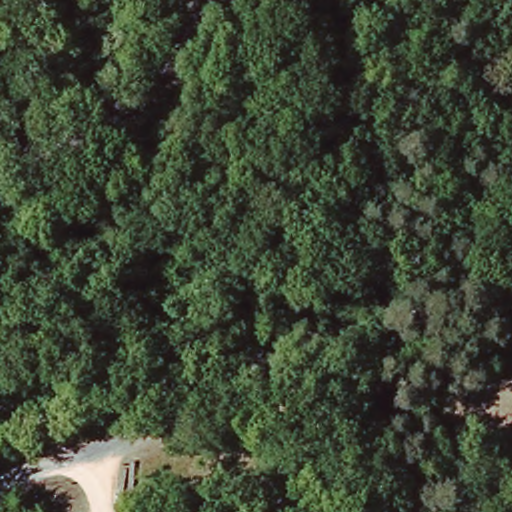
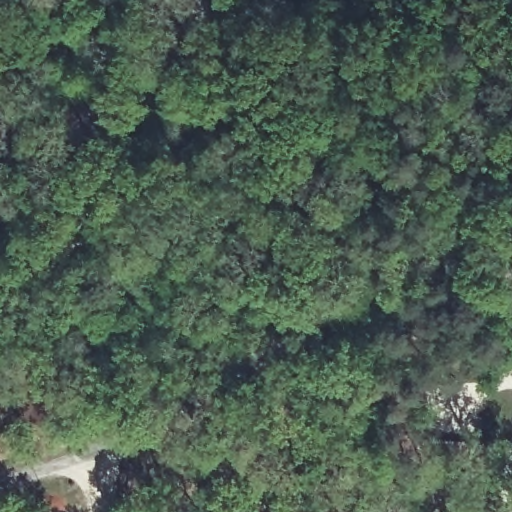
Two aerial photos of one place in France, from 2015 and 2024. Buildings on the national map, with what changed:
[]

